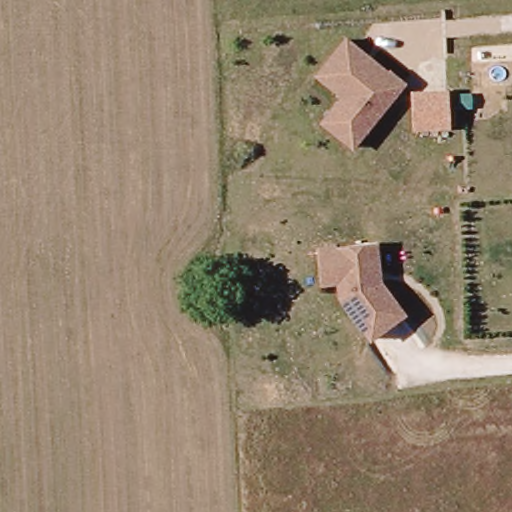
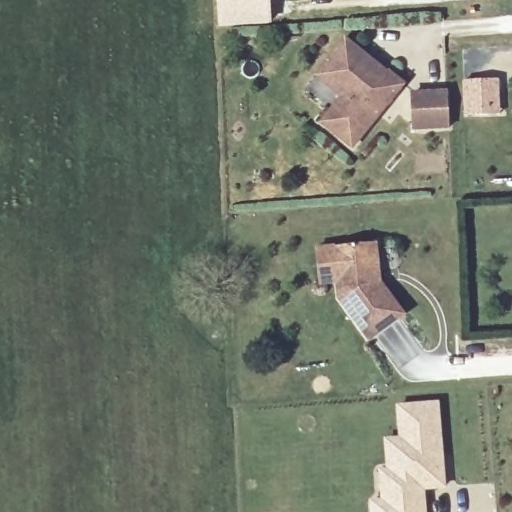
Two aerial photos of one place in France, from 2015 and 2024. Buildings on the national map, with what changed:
new [(213,26),(212,0),(261,0),(262,22),(213,26)]
unchanged [(399,86),(346,150),(316,125),(337,99),(338,85),(318,69),(340,41),(355,54),(356,64),(361,69),(367,63),(382,77),(385,75),(399,86)]
new [(498,78),(500,115),(463,118),(461,81),(498,78)]
unchanged [(443,129),(408,131),(408,96),(442,95),(443,129)]
unchanged [(374,247),(378,286),(402,319),(369,343),(337,301),(333,250),(374,247)]
new [(377,497),(374,467),(385,464),(383,437),(396,435),(394,403),(440,400),(447,488),(426,490),(428,512),(368,512),(367,498),(377,497)]

